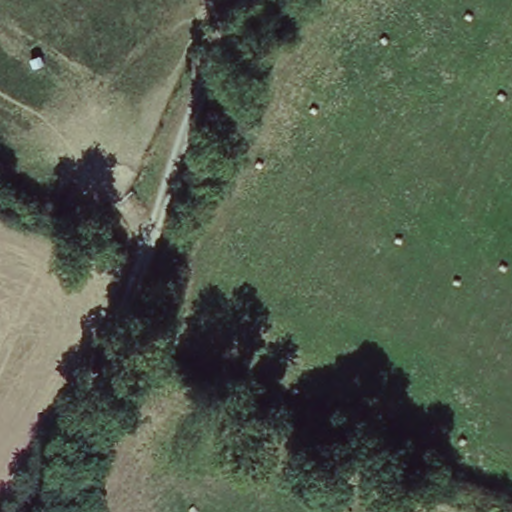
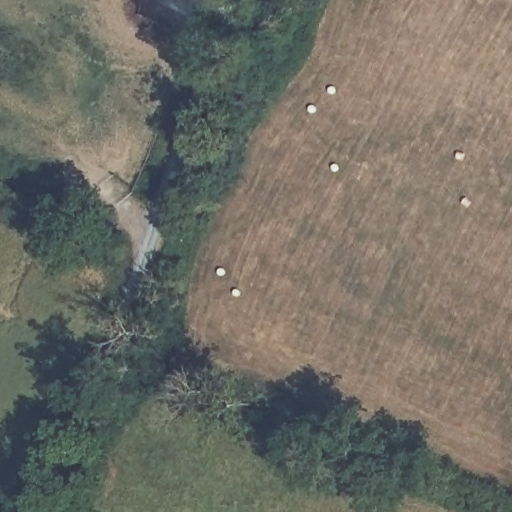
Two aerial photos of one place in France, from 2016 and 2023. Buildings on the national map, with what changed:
[]

